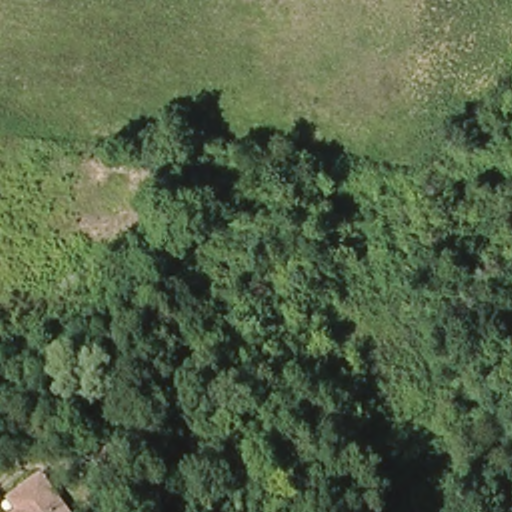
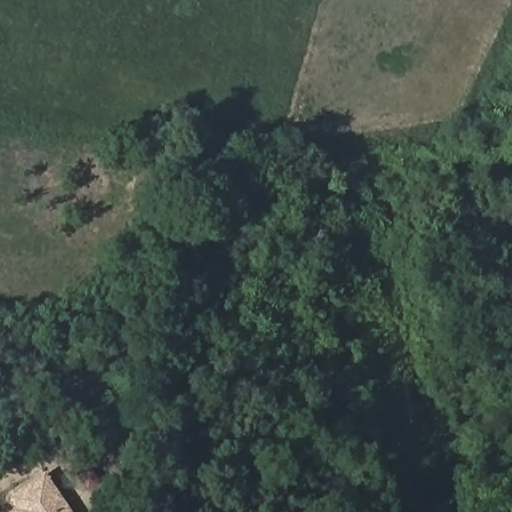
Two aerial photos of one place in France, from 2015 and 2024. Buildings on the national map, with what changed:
unchanged [(16,512),(18,510),(9,498),(20,491),(43,475),(68,512),(16,512)]

